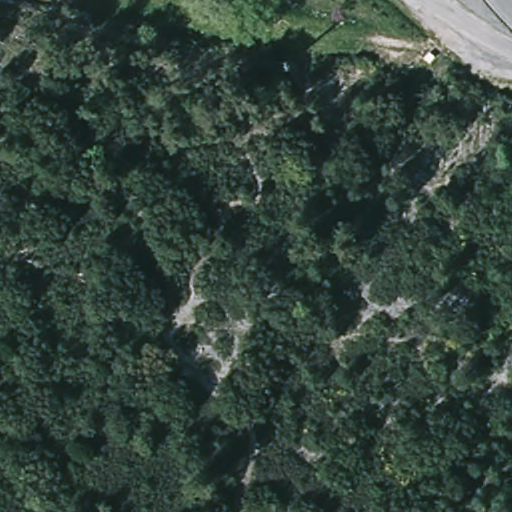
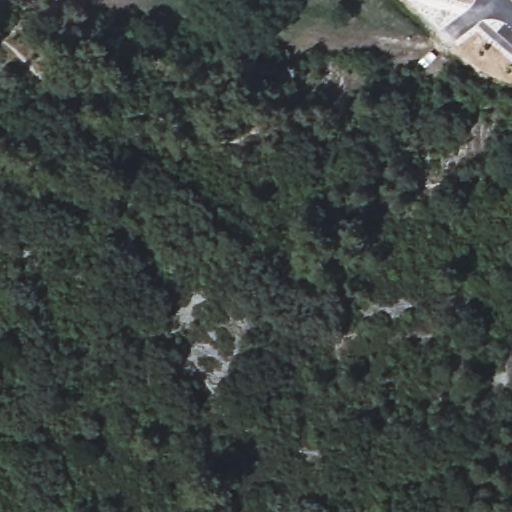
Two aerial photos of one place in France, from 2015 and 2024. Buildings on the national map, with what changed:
[]

